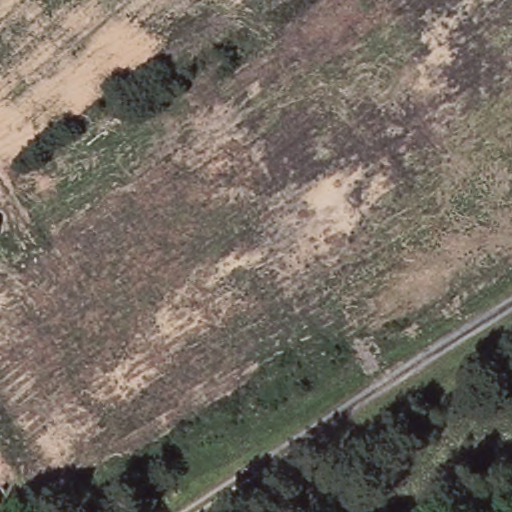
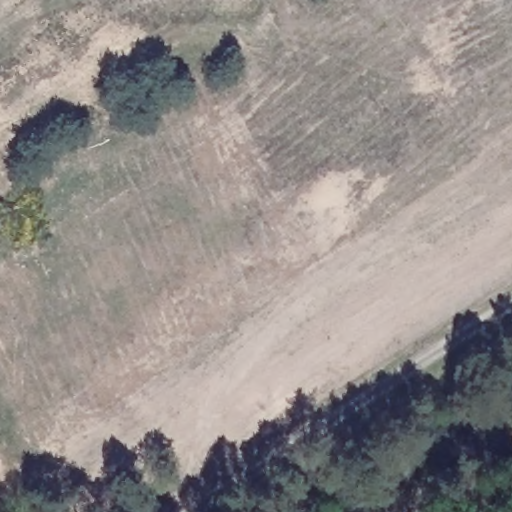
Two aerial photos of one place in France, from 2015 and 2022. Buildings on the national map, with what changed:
unchanged [(0,232),(0,229),(1,230),(0,232)]

